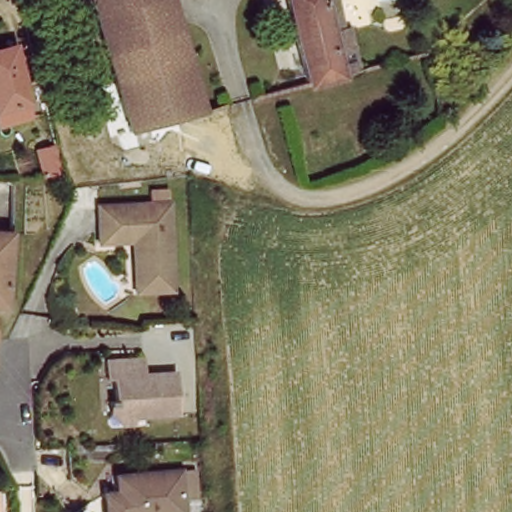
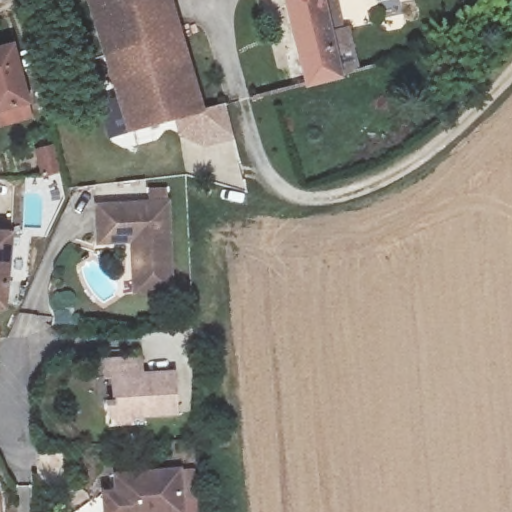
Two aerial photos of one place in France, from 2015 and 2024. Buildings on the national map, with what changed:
unchanged [(133,7),(142,44),(106,55),(88,0),(157,0),(133,7)]
unchanged [(142,44),(133,7),(157,0),(170,0),(204,112),(175,120),(128,131),(106,55),(142,44)]
unchanged [(355,73),(339,78),(306,87),(285,0),(336,0),(343,30),(346,29),(355,73)]
unchanged [(30,93),(0,102),(0,42),(14,37),(30,93)]
new [(204,112),(225,107),(233,141),(200,148),(177,138),(175,120),(204,112)]
unchanged [(46,156),(64,155),(66,173),(48,174),(46,156)]
unchanged [(161,278),(137,279),(134,235),(101,237),(98,200),(169,195),(174,265),(175,277),(161,278)]
unchanged [(7,306),(0,305),(0,232),(13,233),(7,306)]
unchanged [(122,423),(108,412),(107,404),(113,404),(111,377),(104,378),(103,360),(132,358),(133,374),(171,371),(174,412),(134,415),(134,422),(122,423)]
unchanged [(120,493),(119,477),(183,470),(187,512),(109,512),(107,495),(120,493)]

